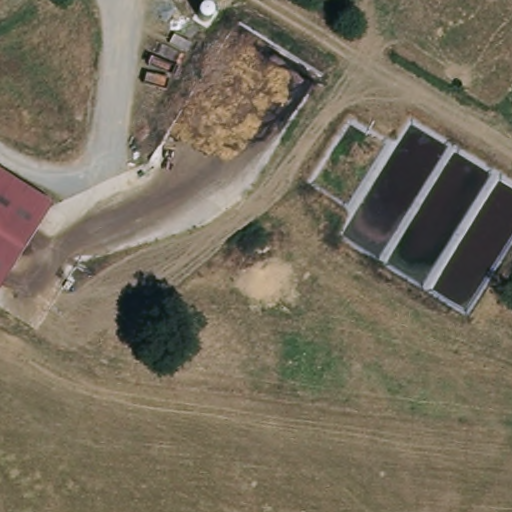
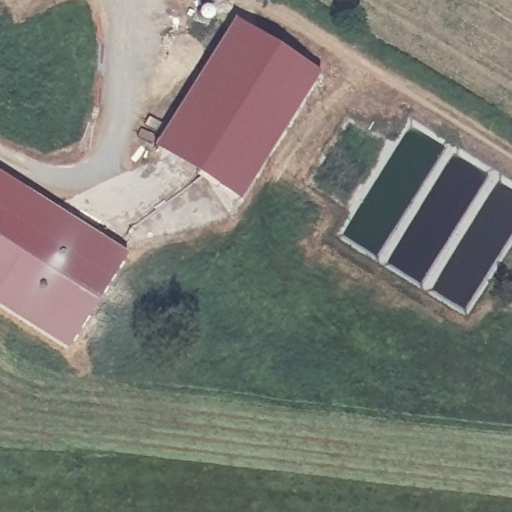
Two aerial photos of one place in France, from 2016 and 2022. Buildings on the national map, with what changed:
new [(320,73),(240,198),(154,147),(235,20),(320,73)]
unchanged [(50,206),(0,284),(0,174),(50,206)]
new [(125,253),(66,349),(0,307),(0,284),(50,206),(125,253)]

